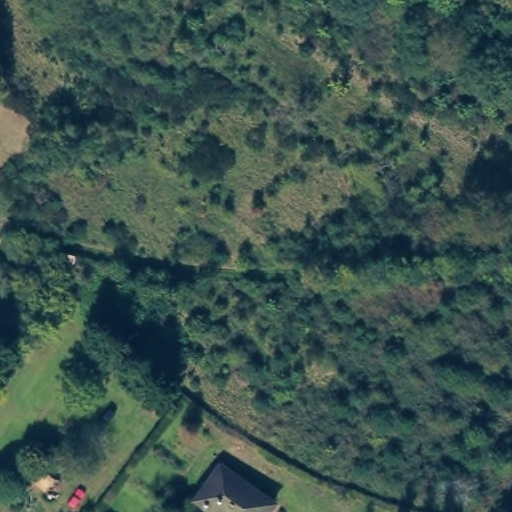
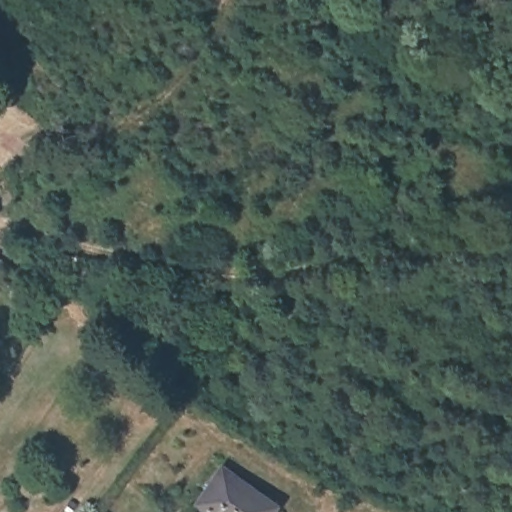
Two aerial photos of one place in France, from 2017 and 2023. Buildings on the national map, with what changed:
unchanged [(219,512),(197,496),(222,462),(275,501),(267,512),(219,512)]

